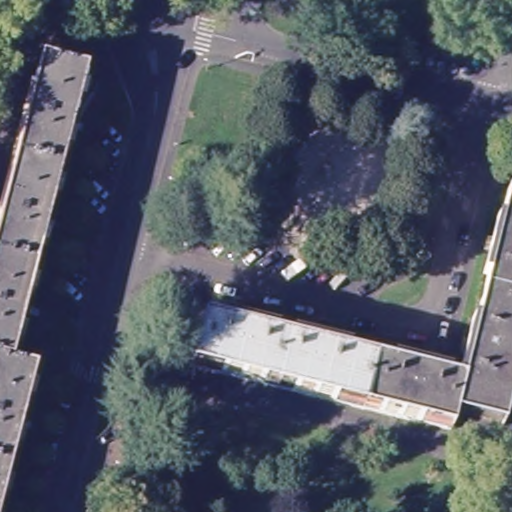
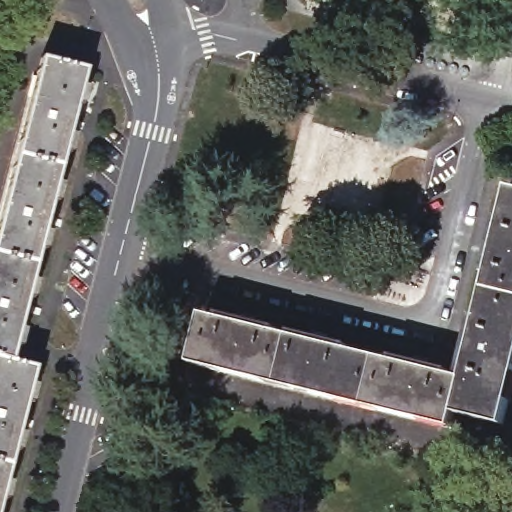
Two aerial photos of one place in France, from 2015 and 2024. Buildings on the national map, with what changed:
unchanged [(0,510),(0,217),(41,58),(88,70),(12,362),(28,366),(36,368),(0,510)]
unchanged [(512,394),(505,420),(458,408),(452,428),(192,365),(205,315),(465,379),(511,190),(512,190),(512,394)]

